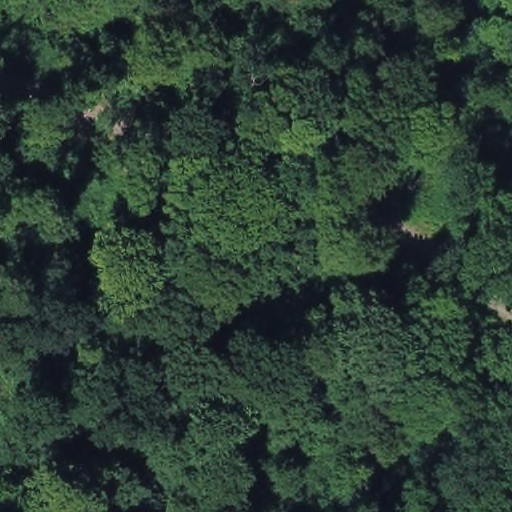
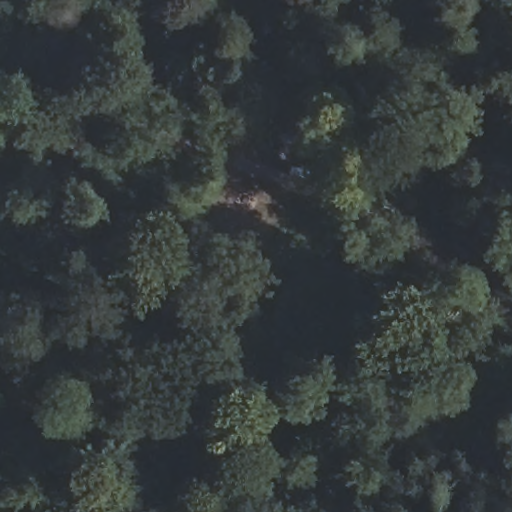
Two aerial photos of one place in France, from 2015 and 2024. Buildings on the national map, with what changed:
unchanged [(265,71),(266,88),(250,89),(250,71),(265,71)]

